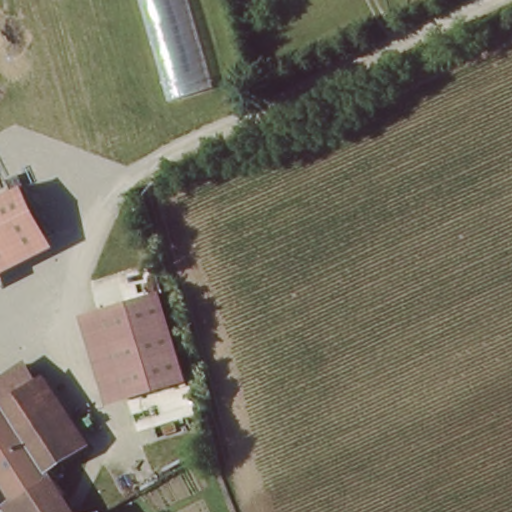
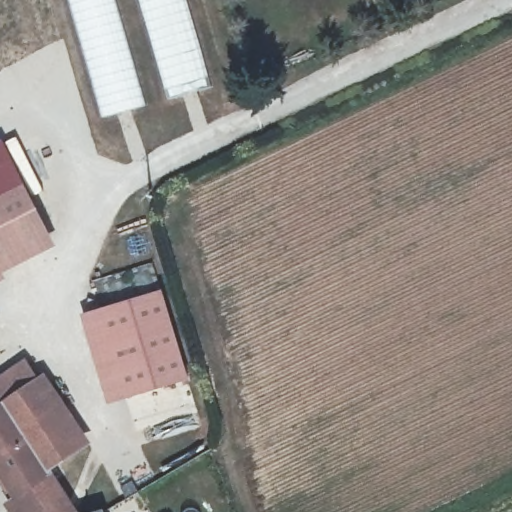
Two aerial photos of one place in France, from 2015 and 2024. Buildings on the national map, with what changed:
new [(143,106),(100,117),(67,0),(113,0),(143,106)]
unchanged [(136,0),(187,0),(215,97),(166,109),(136,0)]
unchanged [(0,280),(0,198),(26,184),(60,250),(0,280)]
unchanged [(148,294),(177,381),(116,400),(87,313),(148,294)]
unchanged [(7,400),(45,376),(72,419),(85,440),(45,463),(7,400)]
unchanged [(19,497),(0,465),(0,403),(7,400),(45,463),(53,477),(19,497)]
unchanged [(28,512),(19,497),(53,477),(74,512),(28,512)]

